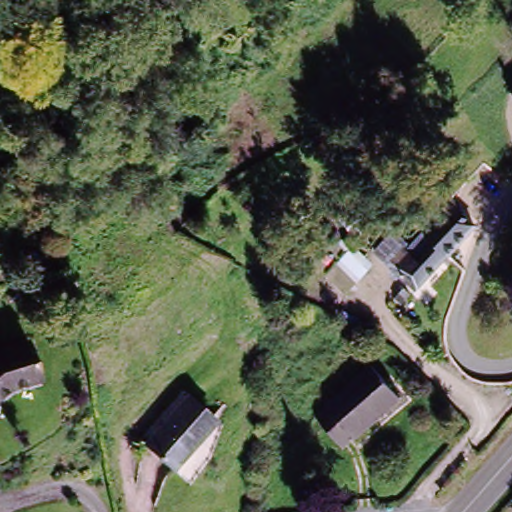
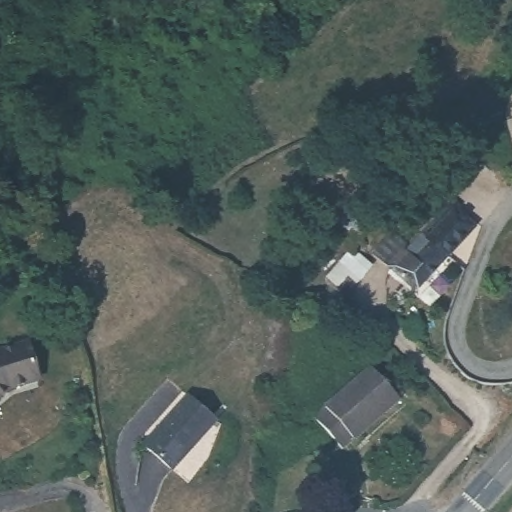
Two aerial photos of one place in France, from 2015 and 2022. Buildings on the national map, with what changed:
unchanged [(127,141),(127,142),(128,142),(128,143),(129,143),(129,144),(130,144),(130,145),(130,146),(130,147),(130,148),(130,149),(131,149),(131,150),(131,151),(131,152),(131,153),(130,153),(130,154),(130,155),(130,156),(130,157),(130,158),(129,158),(129,159),(128,159),(128,160),(127,160),(127,161),(126,161),(126,162),(125,162),(125,163),(124,163),(124,164),(123,164),(122,164),(122,165),(121,165),(120,165),(120,166),(119,166),(118,166),(117,166),(116,166),(115,166),(114,166),(113,166),(112,166),(112,165),(111,165),(110,165),(110,164),(109,164),(108,164),(107,163),(106,163),(106,162),(105,162),(105,161),(105,160),(104,160),(103,160),(103,159),(103,158),(102,158),(102,157),(102,156),(101,156),(101,155),(101,154),(101,153),(101,152),(101,151),(101,150),(101,149),(101,148),(101,147),(101,146),(102,145),(102,144),(103,143),(103,142),(104,142),(104,141),(105,141),(105,140),(106,140),(106,139),(107,139),(107,138),(108,138),(109,138),(109,137),(110,137),(111,137),(112,136),(113,136),(114,136),(115,136),(117,136),(118,136),(119,136),(120,136),(120,137),(121,137),(122,137),(122,138),(123,138),(124,138),(125,139),(126,140),(126,141),(127,141)]
unchanged [(407,282),(401,276),(390,264),(403,247),(417,259),(432,242),(447,225),(465,240),(449,258),(418,292),(410,300),(400,290),(407,282)]
unchanged [(15,381),(0,392),(0,349),(33,338),(42,373),(15,381)]
unchanged [(351,452),(320,422),(370,370),(402,398),(351,452)]
unchanged [(188,450),(193,455),(176,473),(147,446),(191,397),(215,420),(188,450)]

